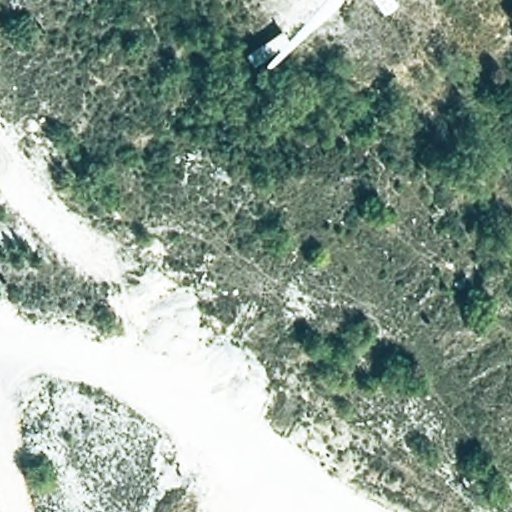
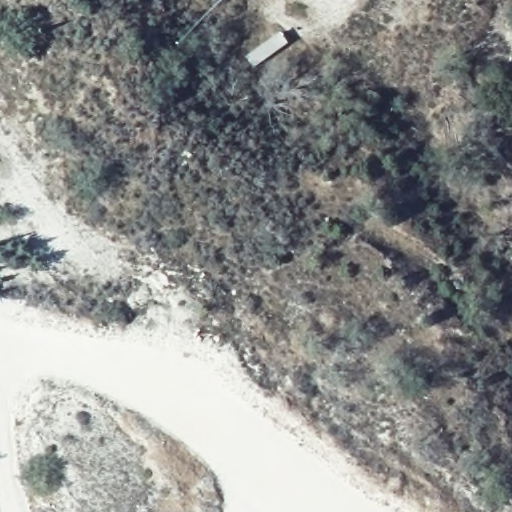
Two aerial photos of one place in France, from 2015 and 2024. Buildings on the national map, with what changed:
[]

